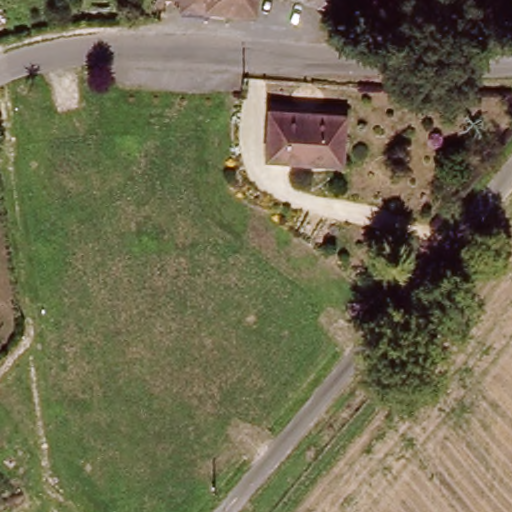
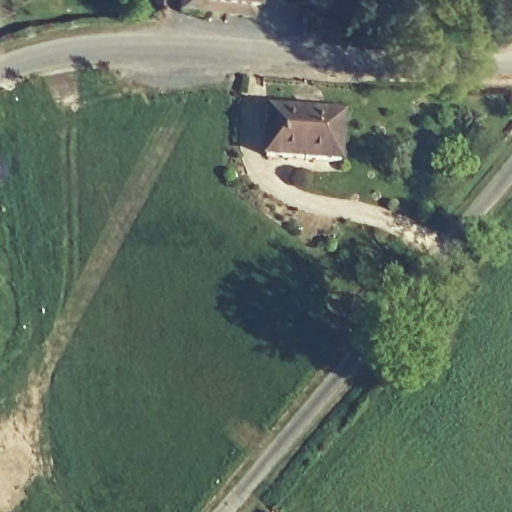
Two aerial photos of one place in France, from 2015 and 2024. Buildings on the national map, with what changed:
unchanged [(254,0),(254,4),(214,0),(254,0)]
unchanged [(329,0),(326,9),(297,0),(329,0)]
unchanged [(265,156),(271,101),(345,109),(338,165),(265,156)]

